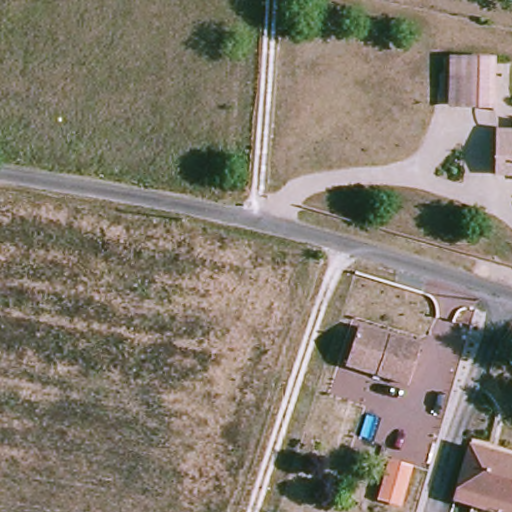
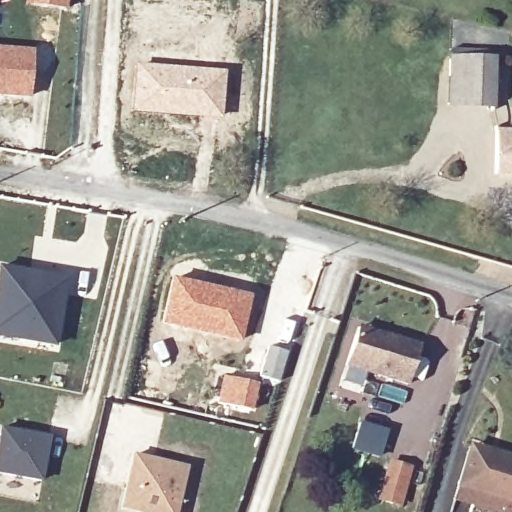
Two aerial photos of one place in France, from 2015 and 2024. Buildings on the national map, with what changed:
new [(27,0),(65,0),(64,10),(26,6),(27,0)]
new [(30,97),(0,96),(0,51),(33,53),(30,97)]
new [(136,60),(226,70),(223,117),(131,111),(136,60)]
unchanged [(446,108),(446,65),(489,65),(489,108),(446,108)]
unchanged [(491,176),(491,133),(510,133),(510,139),(512,140),(512,177),(491,176)]
new [(56,346),(0,337),(0,267),(66,277),(56,346)]
new [(173,278),(249,296),(239,340),(162,322),(173,278)]
unchanged [(409,382),(348,363),(357,331),(358,324),(388,334),(421,344),(409,382)]
new [(224,375),(236,378),(256,382),(250,409),(218,402),(221,388),(224,375)]
new [(40,481),(0,473),(0,429),(48,437),(40,481)]
unchanged [(458,489),(468,451),(471,447),(498,456),(512,460),(512,512),(495,512),(455,500),(458,489)]
new [(186,467),(175,512),(137,512),(121,508),(133,455),(186,467)]
new [(390,464),(410,469),(400,504),(380,498),(390,464)]

